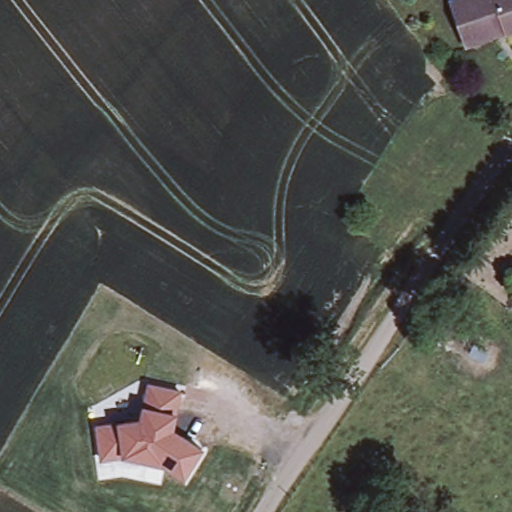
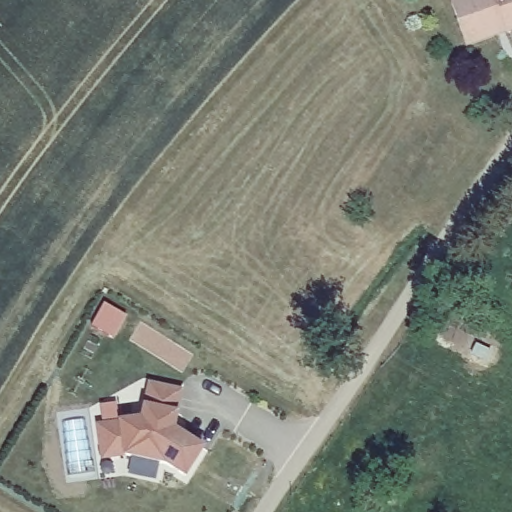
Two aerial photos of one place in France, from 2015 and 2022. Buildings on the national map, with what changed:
unchanged [(452,2),(458,0),(512,0),(512,32),(507,34),(468,47),(467,43),(452,2)]
unchanged [(162,467),(122,456),(102,459),(99,424),(139,419),(150,381),(186,388),(177,429),(206,448),(183,481),(162,467)]

